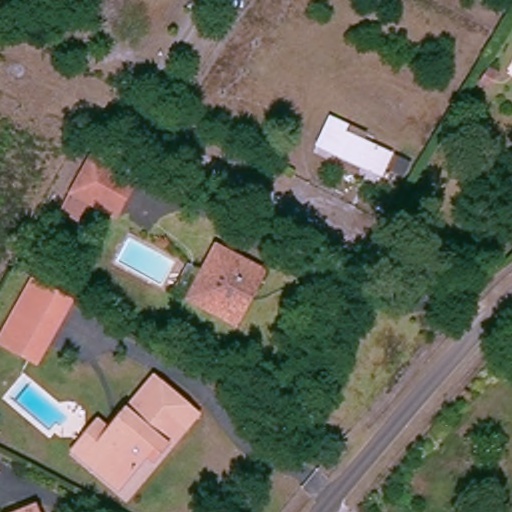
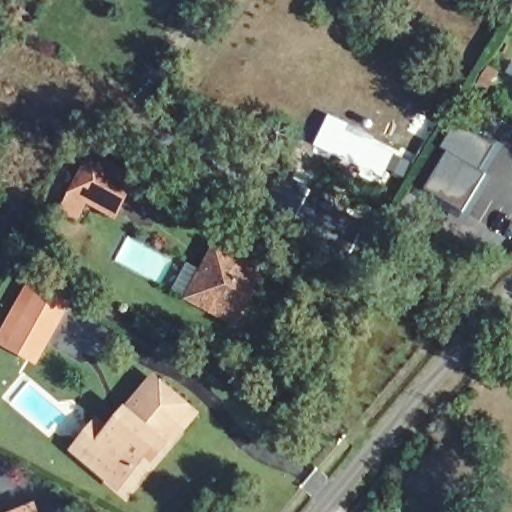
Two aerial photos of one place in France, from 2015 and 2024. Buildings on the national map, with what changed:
unchanged [(318,149),(332,116),(353,126),(350,133),(397,155),(385,180),(318,149)]
new [(442,148),(452,129),(465,136),(467,131),(494,145),(481,170),(486,173),(466,209),(428,188),(448,151),(442,148)]
unchanged [(94,206),(80,226),(57,214),(73,192),(93,150),(140,177),(117,220),(94,206)]
unchanged [(237,330),(188,302),(219,247),(269,275),(237,330)]
unchanged [(9,355),(0,351),(0,345),(32,281),(44,287),(72,301),(37,371),(9,355)]
unchanged [(151,455),(113,492),(81,462),(70,450),(107,411),(117,424),(150,390),(193,432),(161,465),(151,455)]
unchanged [(29,511),(29,512),(27,512),(29,511)]

